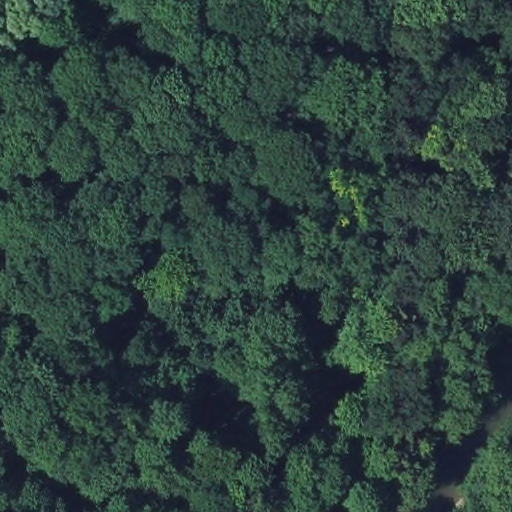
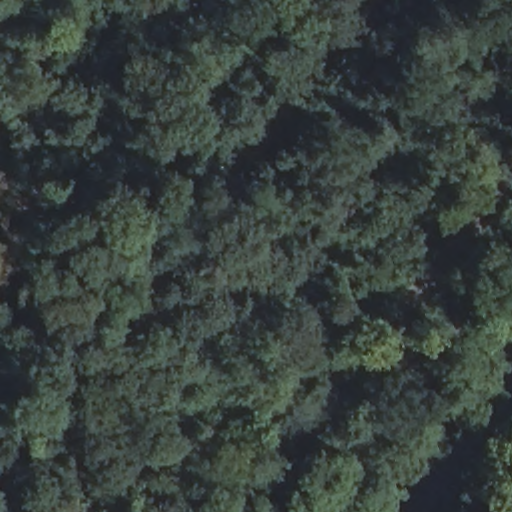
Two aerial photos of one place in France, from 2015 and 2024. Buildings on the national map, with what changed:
[]

